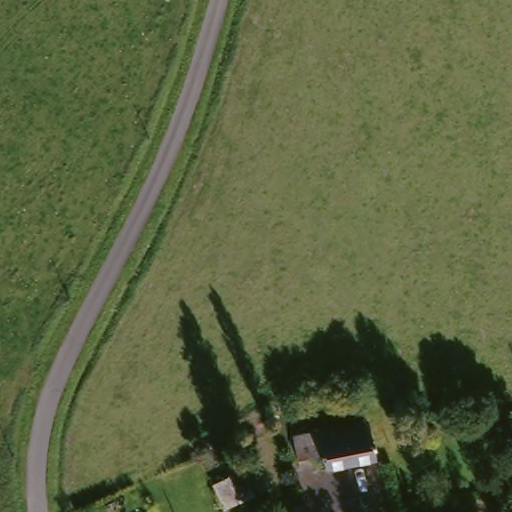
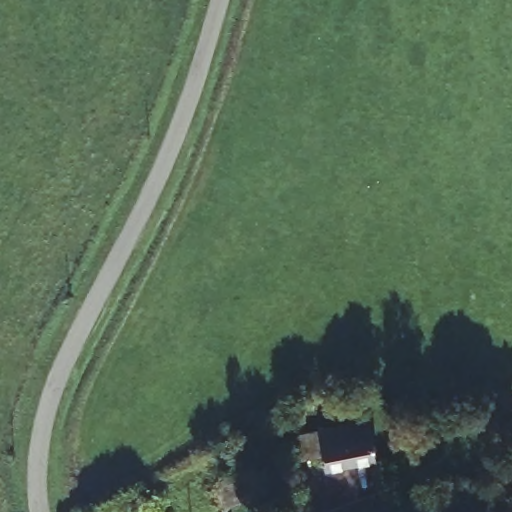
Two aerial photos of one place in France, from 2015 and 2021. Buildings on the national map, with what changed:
unchanged [(293,441),(319,436),(363,427),(370,464),(326,474),(324,463),(299,467),(293,441)]

